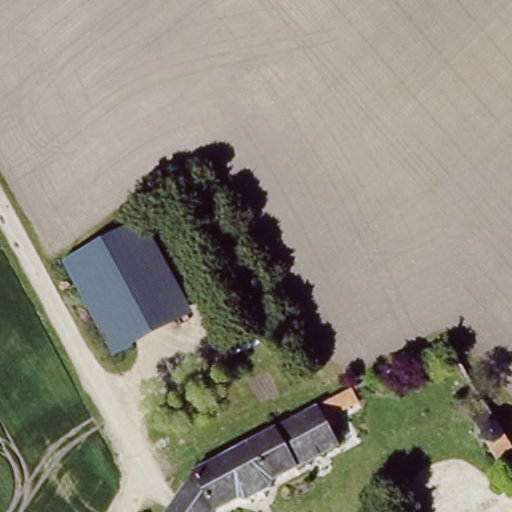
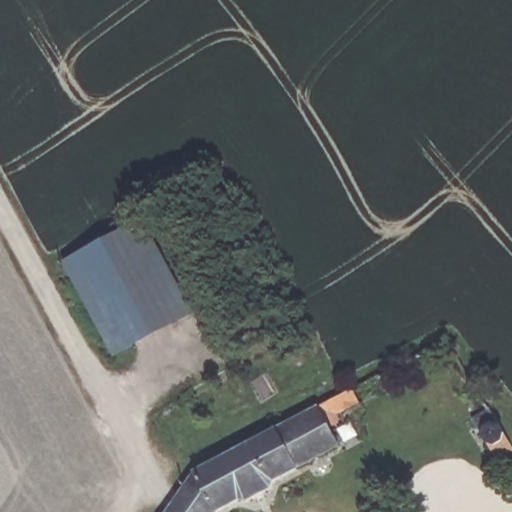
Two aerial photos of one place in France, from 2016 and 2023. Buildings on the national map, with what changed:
unchanged [(187,314),(117,356),(68,259),(140,221),(187,314)]
unchanged [(484,441),(460,404),(477,393),(512,450),(512,490),(509,492),(479,444),(484,441)]
unchanged [(257,487),(260,495),(242,505),(236,500),(219,512),(198,512),(176,495),(189,475),(310,410),(337,395),(342,405),(319,418),(334,446),(257,487)]
unchanged [(176,495),(198,512),(164,512),(176,495)]

